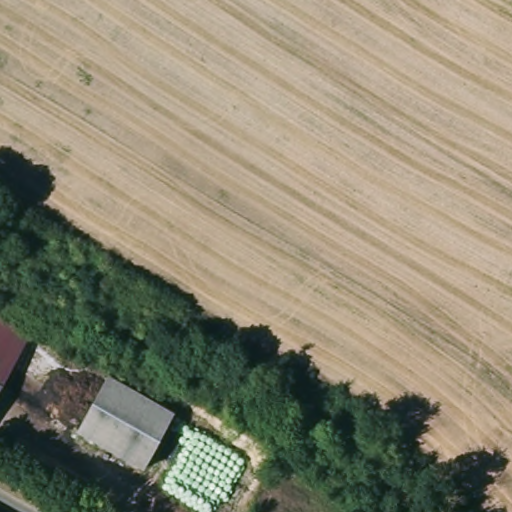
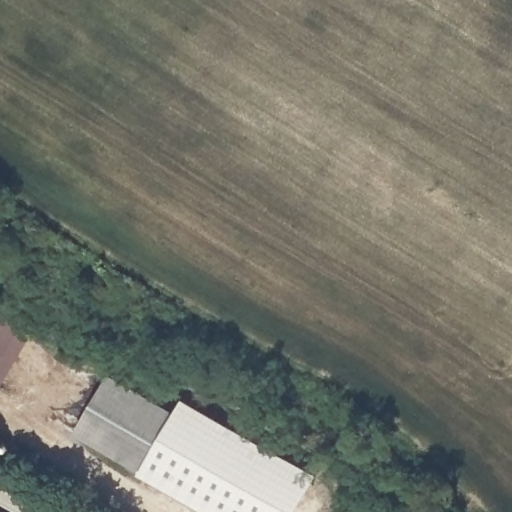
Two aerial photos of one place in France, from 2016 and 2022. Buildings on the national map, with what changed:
unchanged [(29,336),(0,390),(0,320),(29,336)]
unchanged [(143,468),(76,432),(105,380),(172,416),(143,468)]
new [(317,475),(296,512),(212,512),(141,472),(143,468),(172,416),(182,398),(317,475)]

